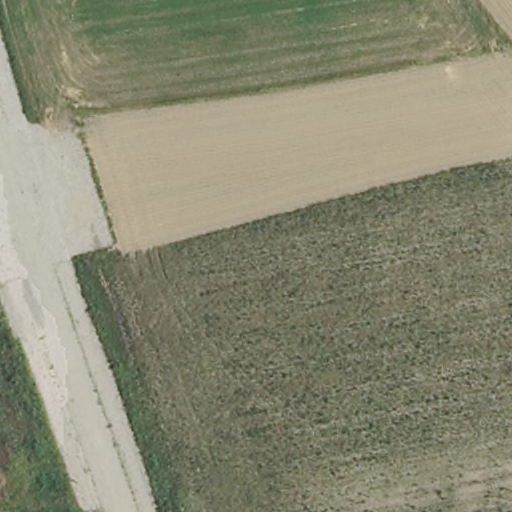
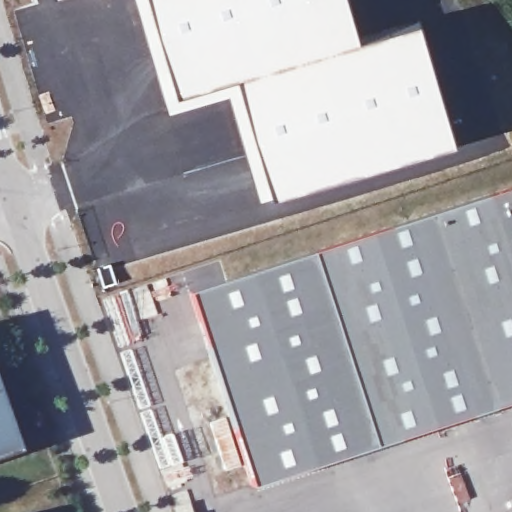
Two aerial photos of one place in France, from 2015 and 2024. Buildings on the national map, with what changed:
new [(178,94),(239,76),(254,134),(275,195),(261,198),(230,94),(171,110),(171,107),(169,108),(136,0),(150,0),(161,40),(178,94)]
new [(339,44),(239,76),(178,94),(161,40),(150,0),(352,0),(362,35),(339,44)]
new [(339,44),(362,35),(421,17),(457,141),(275,195),(254,134),(239,76),(339,44)]
new [(512,185),(512,401),(250,486),(187,292),(512,185)]
unchanged [(0,455),(0,391),(20,448),(0,455)]

